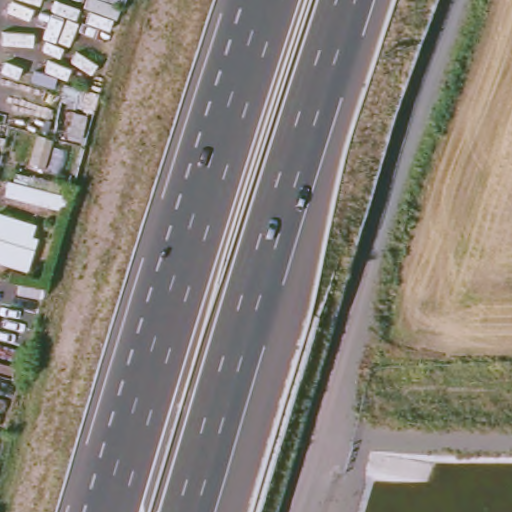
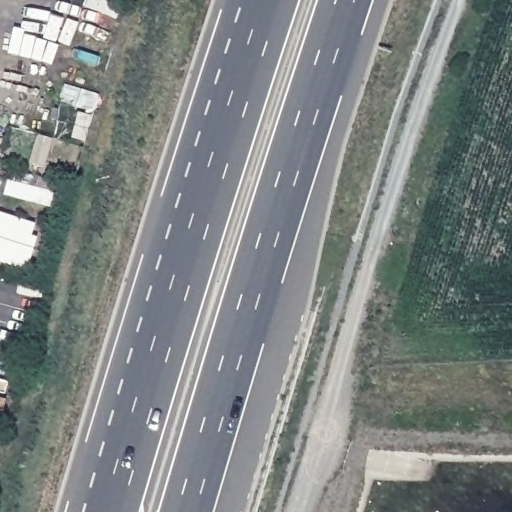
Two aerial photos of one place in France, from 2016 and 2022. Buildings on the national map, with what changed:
unchanged [(33,224),(30,240),(37,242),(27,269),(0,262),(0,215),(33,224)]

